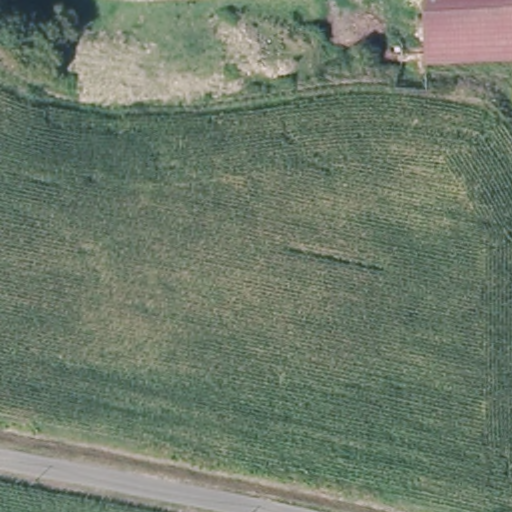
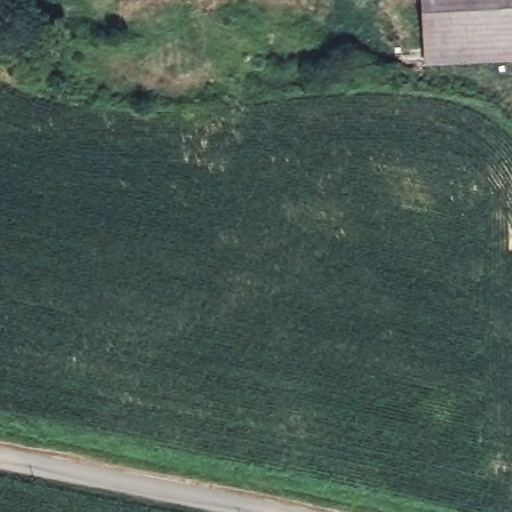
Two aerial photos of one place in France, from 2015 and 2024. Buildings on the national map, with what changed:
unchanged [(512,0),(512,58),(425,55),(427,0),(512,0)]

